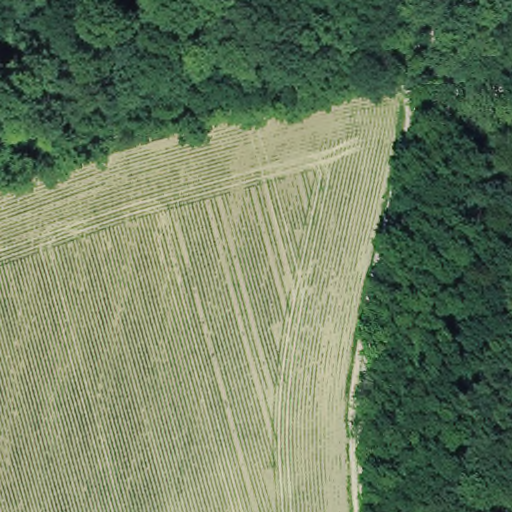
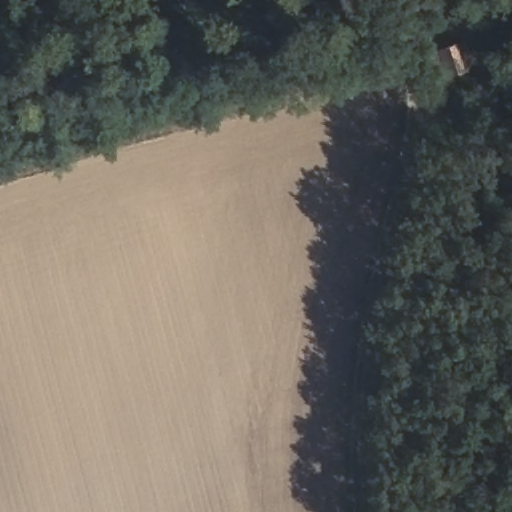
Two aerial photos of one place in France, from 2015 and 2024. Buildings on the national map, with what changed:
unchanged [(426,73),(466,57),(476,82),(431,97),(426,73)]

